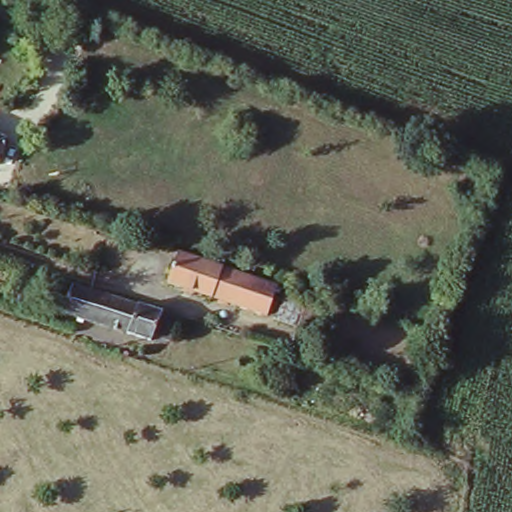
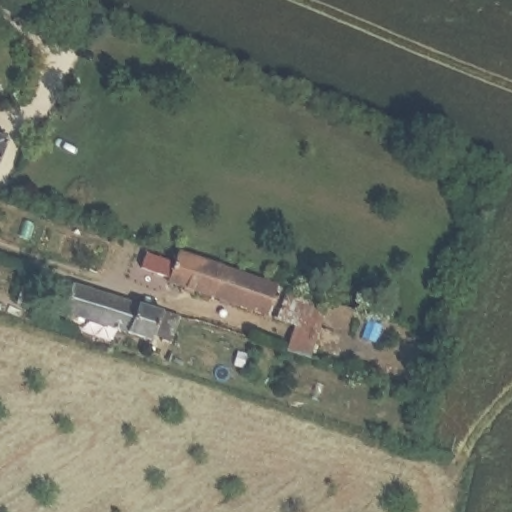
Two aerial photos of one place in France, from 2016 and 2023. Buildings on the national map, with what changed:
unchanged [(0,157),(0,135),(6,138),(0,157)]
unchanged [(278,289),(265,320),(164,285),(175,252),(278,289)]
unchanged [(61,309),(69,281),(102,291),(94,319),(61,309)]
unchanged [(174,325),(152,318),(147,335),(94,319),(102,291),(177,312),(174,325)]
unchanged [(36,320),(27,317),(33,300),(42,303),(36,320)]

